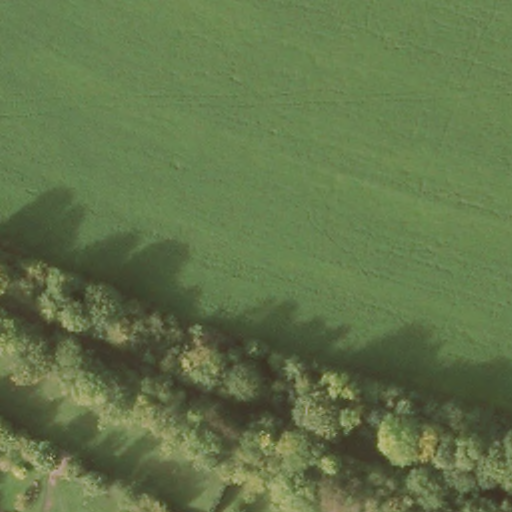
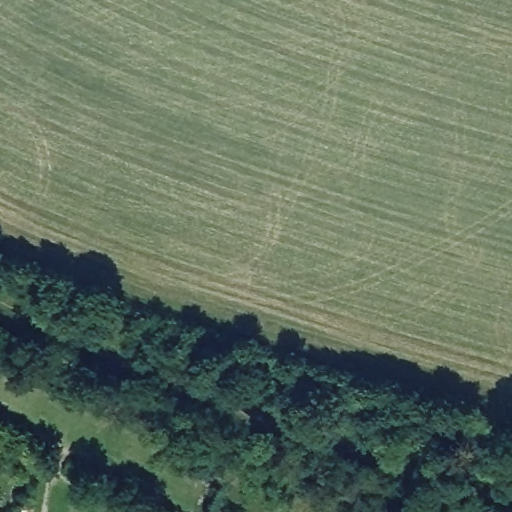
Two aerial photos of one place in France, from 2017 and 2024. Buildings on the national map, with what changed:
unchanged [(184,512),(181,512),(182,511),(184,512)]

